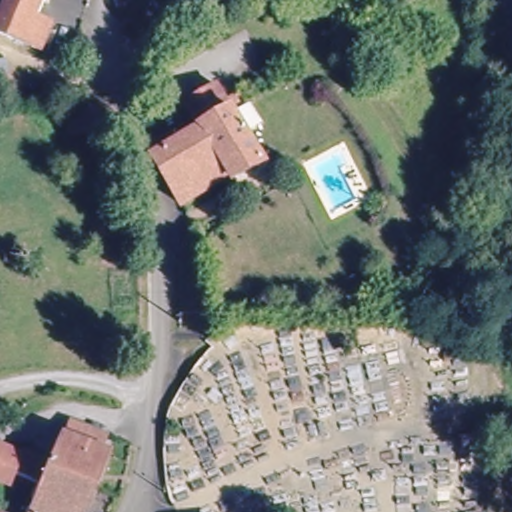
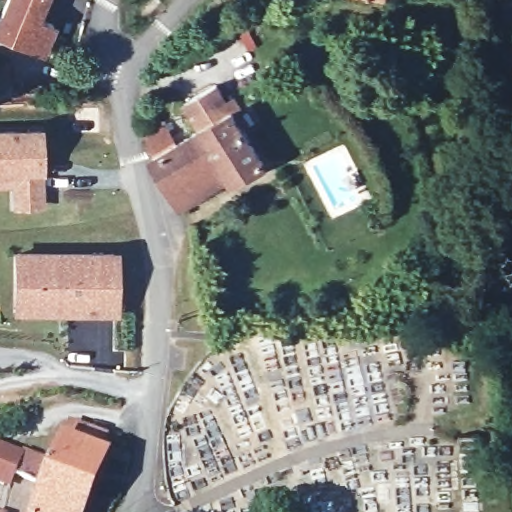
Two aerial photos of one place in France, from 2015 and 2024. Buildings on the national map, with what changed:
unchanged [(40,18),(57,24),(46,51),(0,32),(0,26),(11,0),(47,0),(40,18)]
unchanged [(5,88),(0,88),(0,59),(8,59),(5,88)]
unchanged [(232,112),(264,162),(232,181),(230,177),(184,205),(155,156),(146,132),(165,120),(177,142),(200,129),(184,103),(216,84),(226,101),(234,97),(240,107),(232,112)]
unchanged [(96,107),(97,107),(97,110),(98,133),(67,134),(66,108),(96,107)]
new [(45,171),(45,207),(12,209),(11,189),(0,190),(0,127),(42,125),(45,171)]
new [(117,312),(12,313),(12,250),(117,249),(117,312)]
unchanged [(21,455),(23,451),(55,464),(65,439),(66,439),(72,424),(97,434),(107,437),(101,452),(107,454),(83,512),(33,512),(39,499),(31,495),(36,483),(14,474),(13,476),(10,483),(0,479),(0,446),(21,455)]

